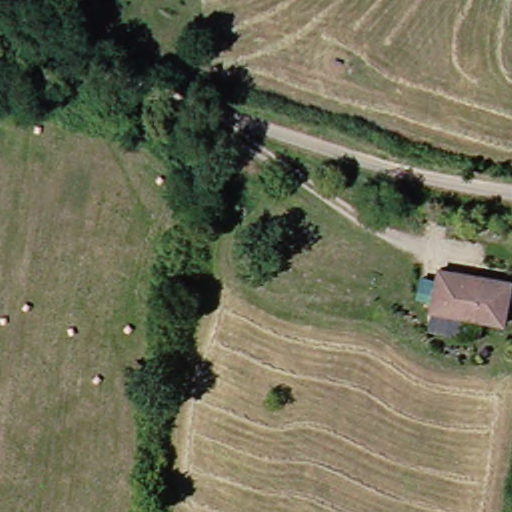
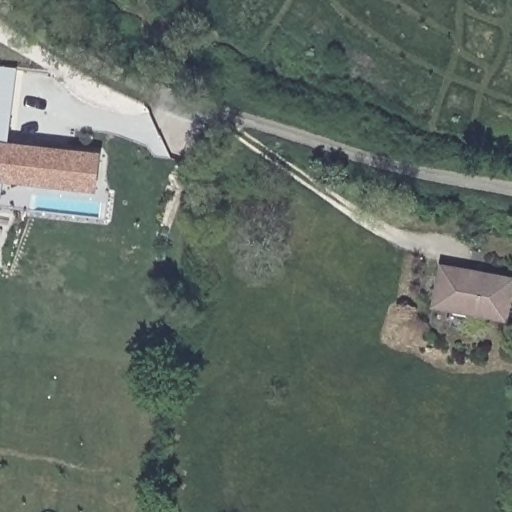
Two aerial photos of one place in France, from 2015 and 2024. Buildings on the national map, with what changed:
new [(1,207),(0,207),(0,66),(16,68),(8,142),(102,152),(97,192),(5,182),(1,207)]
unchanged [(512,276),(512,279),(505,318),(436,304),(445,265),(512,276)]

